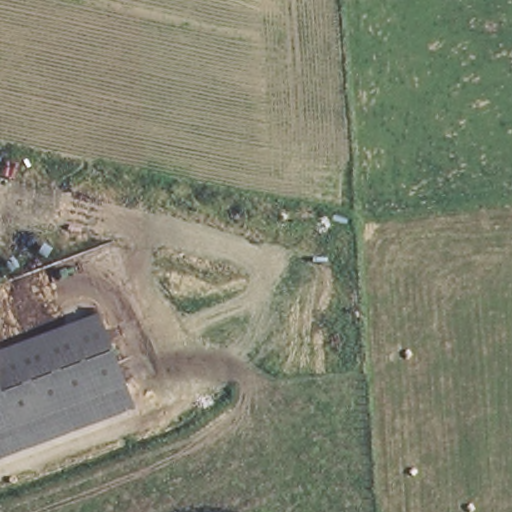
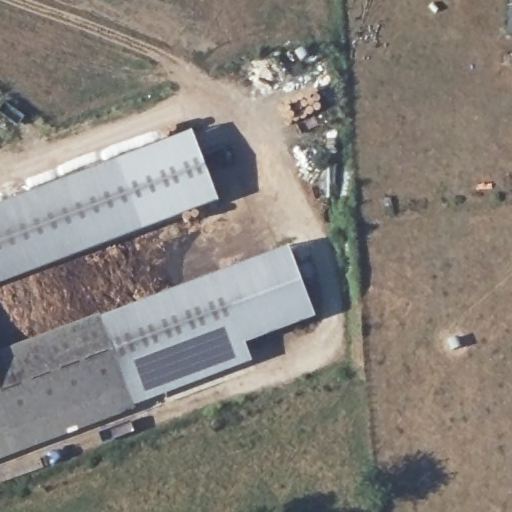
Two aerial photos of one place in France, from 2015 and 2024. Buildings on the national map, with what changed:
new [(216,203),(0,283),(0,204),(190,136),(216,203)]
new [(134,404),(136,408),(0,459),(0,429),(15,423),(128,383),(100,313),(289,244),(315,315),(245,342),(251,360),(134,404)]
unchanged [(128,383),(15,423),(0,385),(0,349),(100,313),(128,383)]
unchanged [(0,429),(0,385),(15,423),(0,429)]

